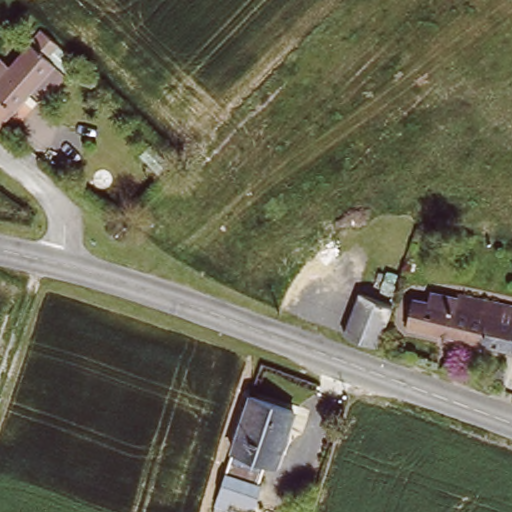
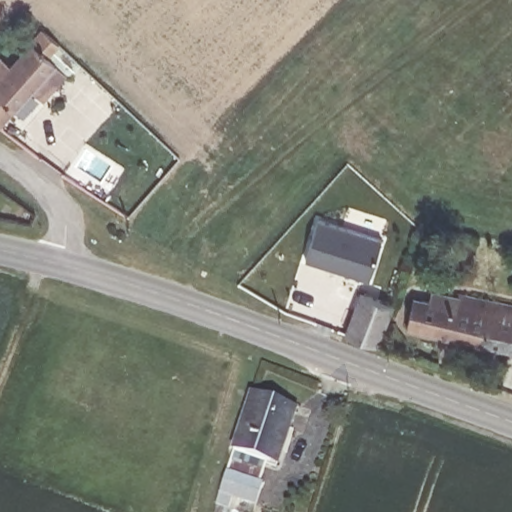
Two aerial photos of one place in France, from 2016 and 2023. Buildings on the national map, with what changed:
unchanged [(8,113),(0,122),(0,61),(1,59),(10,67),(46,31),(61,45),(47,60),(57,70),(12,116),(8,113)]
new [(370,281),(305,261),(317,218),(381,238),(370,281)]
unchanged [(377,342),(343,329),(358,289),(391,302),(377,342)]
unchanged [(406,329),(412,298),(428,301),(430,291),(456,297),(457,294),(512,306),(512,352),(406,329)]
unchanged [(257,478),(258,479),(251,499),(228,490),(223,504),(211,499),(252,392),(295,408),(275,460),(265,457),(257,478)]

